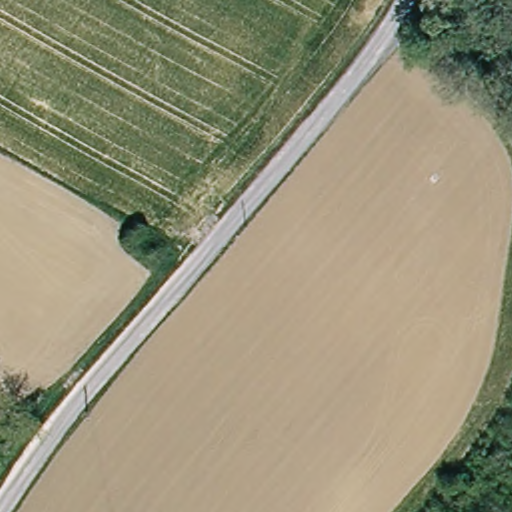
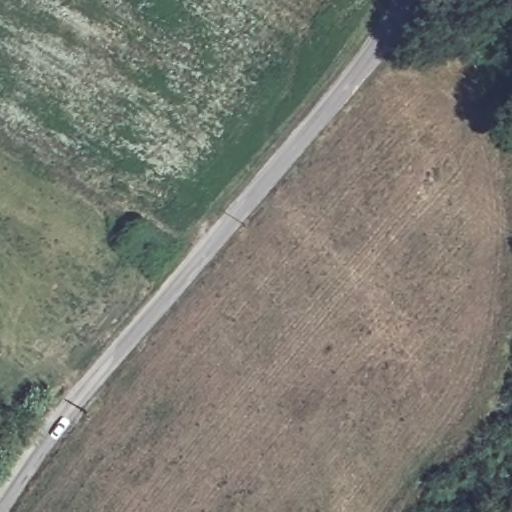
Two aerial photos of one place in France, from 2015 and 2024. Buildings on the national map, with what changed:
unchanged [(158,246),(135,233),(148,211),(170,224),(158,246)]

